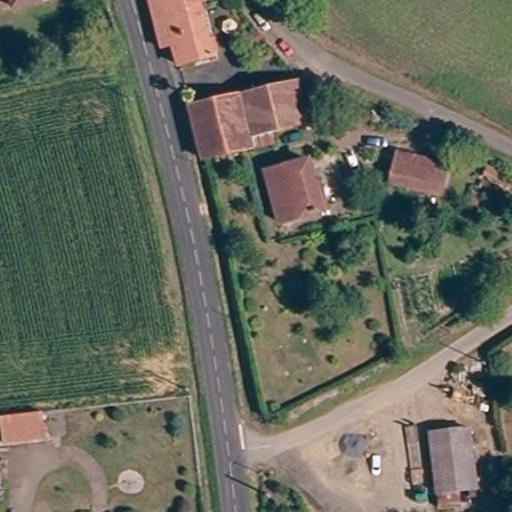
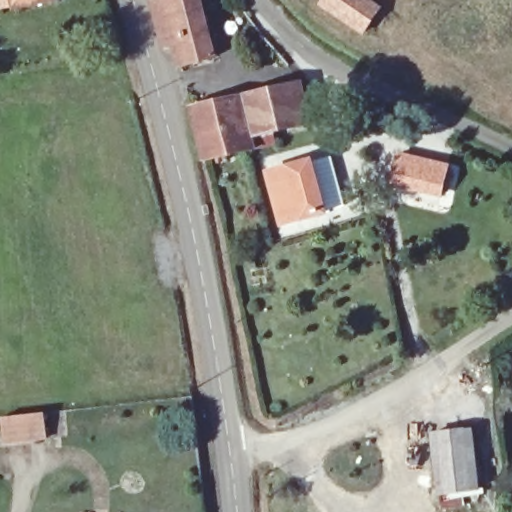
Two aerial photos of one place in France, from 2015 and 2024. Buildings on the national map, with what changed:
unchanged [(14,0),(46,0),(15,6),(14,0)]
unchanged [(172,60),(166,40),(159,41),(146,0),(199,0),(213,49),(172,60)]
new [(364,35),(318,5),(321,0),(371,0),(382,8),(364,35)]
unchanged [(293,80),(303,115),(262,125),(267,143),(199,159),(184,107),(293,80)]
unchanged [(433,196),(385,184),(394,155),(441,168),(433,196)]
unchanged [(326,208),(280,222),(263,170),(309,159),(326,208)]
unchanged [(1,439),(0,437),(0,415),(40,409),(44,434),(1,439)]
unchanged [(468,427),(474,487),(453,489),(455,505),(436,507),(428,432),(468,427)]

